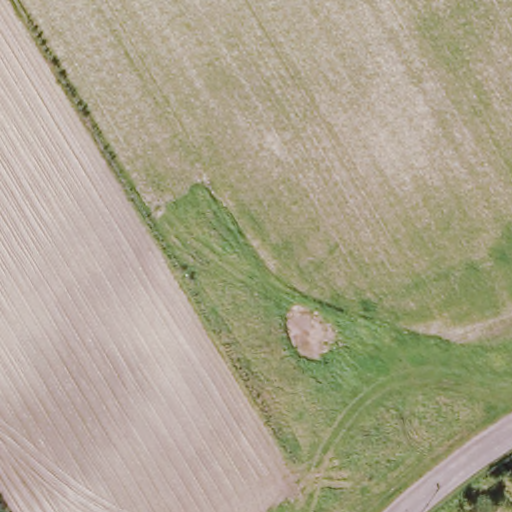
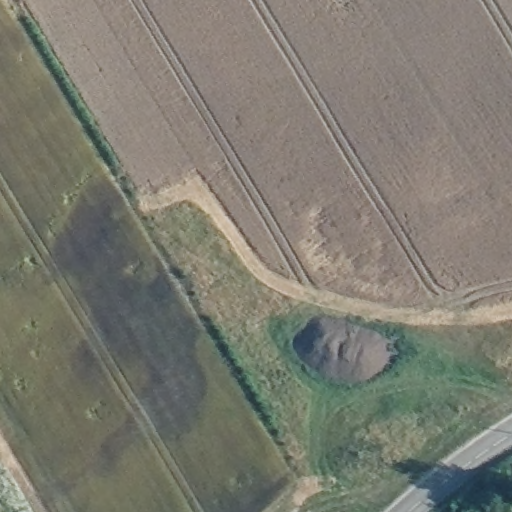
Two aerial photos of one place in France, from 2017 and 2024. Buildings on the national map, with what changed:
[]

